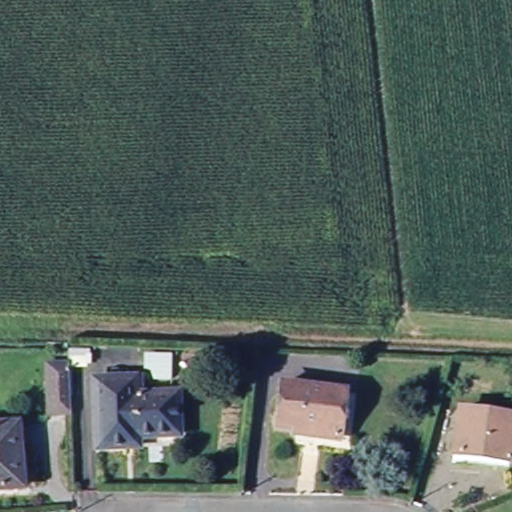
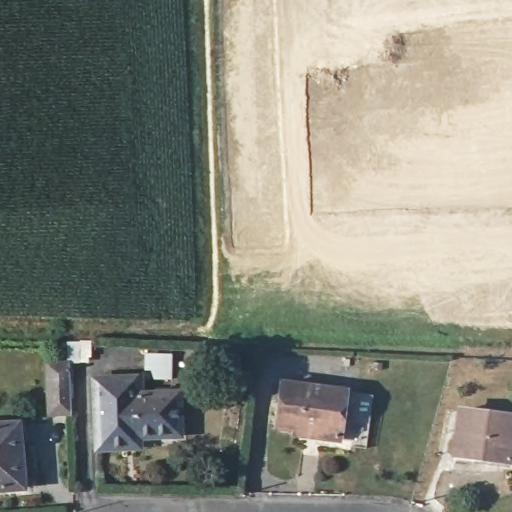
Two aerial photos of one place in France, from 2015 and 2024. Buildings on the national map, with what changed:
unchanged [(39,415),(38,371),(50,371),(51,360),(67,360),(72,415),(39,415)]
unchanged [(344,448),(289,442),(289,425),(271,422),(275,383),(349,390),(344,448)]
unchanged [(118,461),(93,461),(90,390),(135,388),(136,403),(164,403),(177,402),(179,443),(165,443),(118,446),(118,461)]
unchanged [(510,461),(454,460),(454,416),(512,417),(512,428),(510,461)]
unchanged [(0,425),(15,423),(23,487),(0,491),(0,425)]

